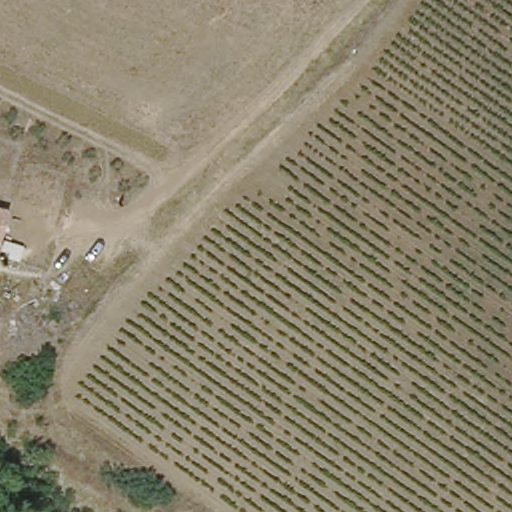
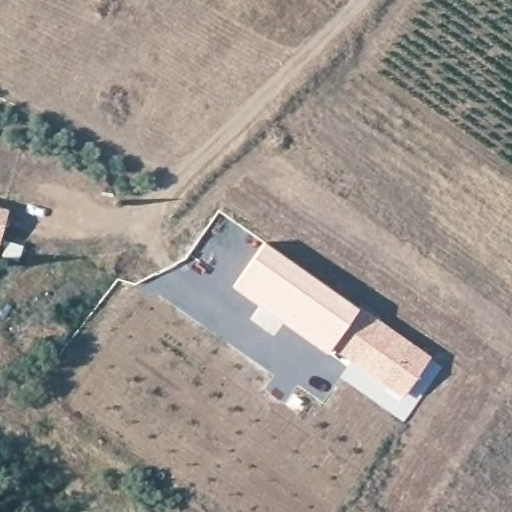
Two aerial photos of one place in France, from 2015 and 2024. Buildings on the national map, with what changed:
unchanged [(6,206),(0,246),(0,205),(6,206)]
new [(265,241),(361,306),(347,326),(328,352),(275,317),(232,287),(265,241)]
new [(351,329),(347,326),(361,306),(432,355),(401,397),(336,352),(351,329)]

